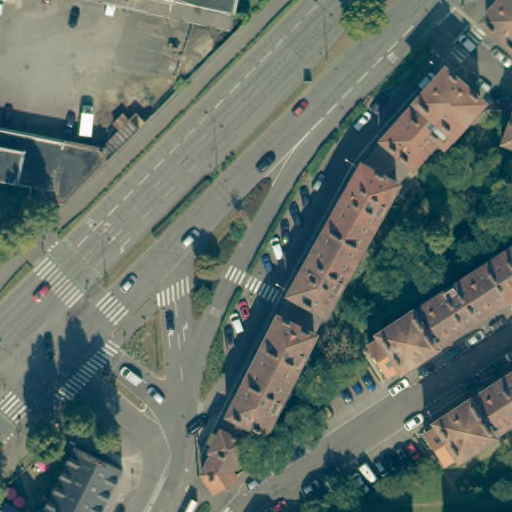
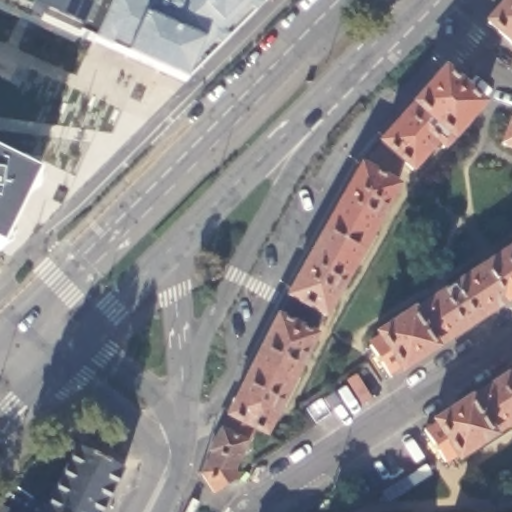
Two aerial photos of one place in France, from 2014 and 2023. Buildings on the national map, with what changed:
new [(183,83),(125,56),(38,20),(0,5),(0,0),(142,0),(147,2),(149,0),(269,0),(259,10),(183,83)]
demolished [(235,12),(235,14),(168,0),(238,0),(237,3),(235,12)]
unchanged [(508,0),(512,0),(512,45),(487,24),(508,0)]
unchanged [(378,139),(376,138),(440,67),(476,99),(438,142),(432,138),(392,183),(357,162),(378,139)]
unchanged [(512,117),(512,148),(502,144),(512,117)]
demolished [(63,198),(62,199),(57,198),(29,192),(31,182),(0,176),(0,125),(108,145),(105,155),(63,198)]
new [(43,168),(39,175),(43,177),(6,255),(0,252),(0,142),(43,168)]
unchanged [(392,183),(320,311),(288,293),(283,290),(355,161),(357,162),(392,183)]
demolished [(9,189),(7,203),(0,202),(0,187),(9,189)]
unchanged [(487,260),(512,244),(512,293),(510,295),(487,260)]
unchanged [(510,295),(431,347),(407,312),(487,260),(510,295)]
unchanged [(320,311),(258,429),(249,424),(225,412),(223,409),(288,293),(320,311)]
unchanged [(431,347),(385,377),(364,344),(375,338),(373,334),(392,322),(407,312),(431,347)]
unchanged [(467,400),(512,371),(512,422),(490,437),(467,400)]
unchanged [(467,400),(490,437),(457,458),(454,454),(443,461),(423,429),(467,400)]
unchanged [(210,487),(197,469),(208,449),(205,447),(225,412),(249,424),(226,466),(231,473),(210,487)]
unchanged [(73,448),(121,469),(99,512),(41,512),(73,448)]

